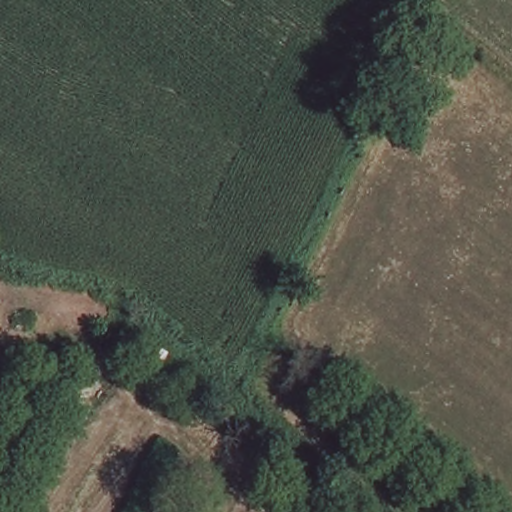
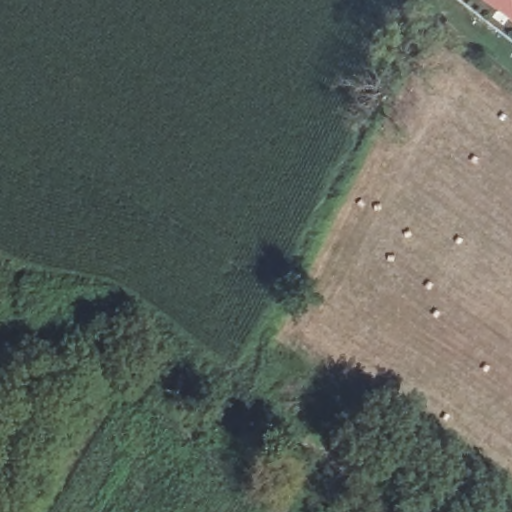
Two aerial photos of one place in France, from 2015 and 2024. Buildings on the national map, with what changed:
new [(485,0),(512,0),(512,18),(485,0)]

